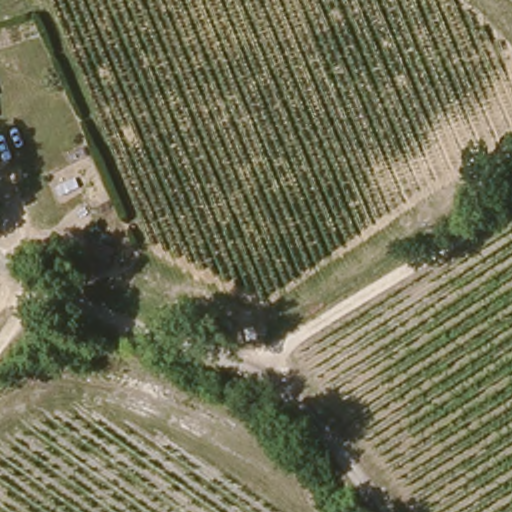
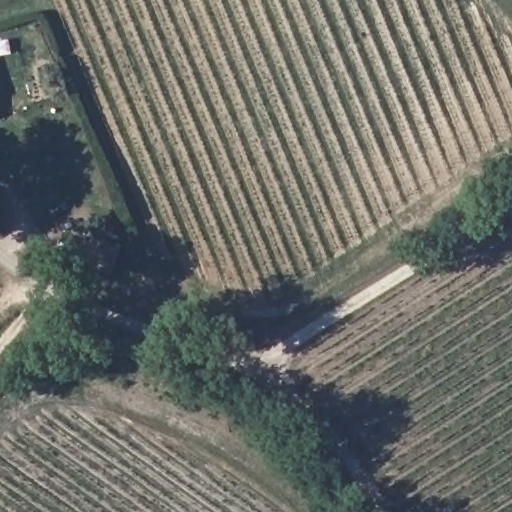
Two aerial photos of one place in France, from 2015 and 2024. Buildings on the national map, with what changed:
unchanged [(84,275),(94,255),(116,266),(107,285),(84,275)]

